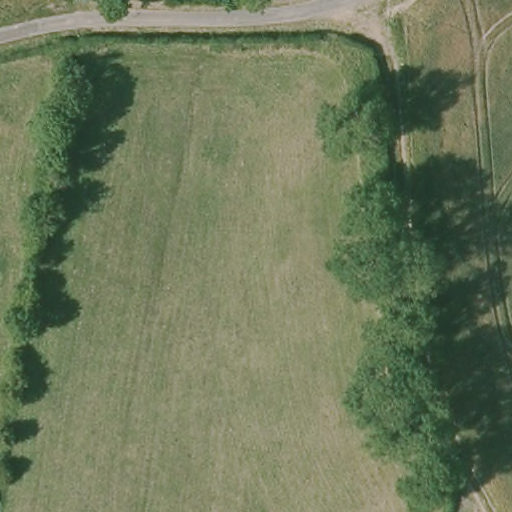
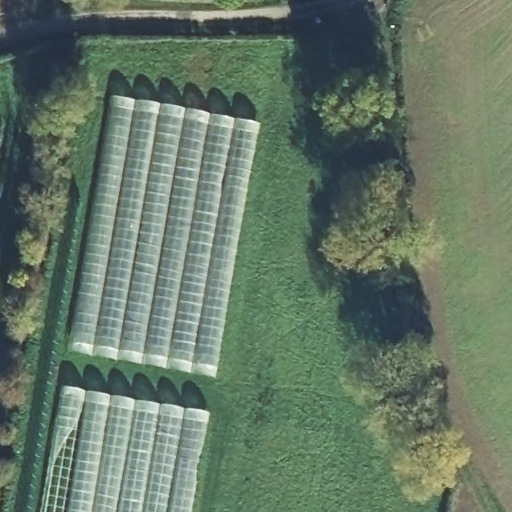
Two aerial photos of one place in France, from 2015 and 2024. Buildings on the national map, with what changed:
new [(260,123),(215,379),(67,353),(110,96),(260,123)]
new [(209,412),(193,512),(41,512),(62,387),(209,412)]

